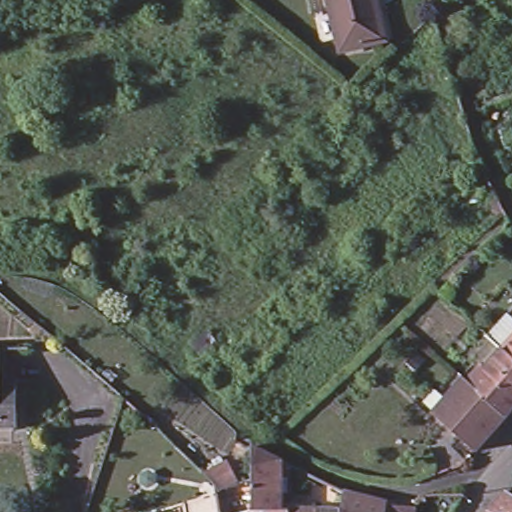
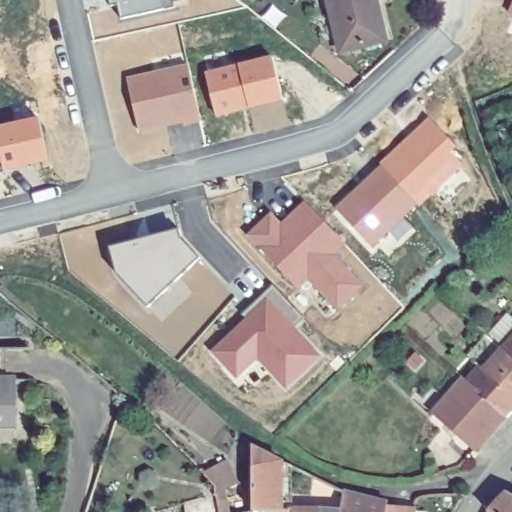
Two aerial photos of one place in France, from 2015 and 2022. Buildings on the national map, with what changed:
new [(115,12),(112,0),(120,0),(122,10),(115,12)]
new [(125,25),(119,0),(176,0),(179,12),(125,25)]
unchanged [(375,0),(386,41),(340,53),(326,0),(375,0)]
new [(512,4),(512,13),(509,11),(512,4)]
new [(219,121),(209,80),(276,64),(286,105),(252,113),(242,115),(219,121)]
new [(204,125),(187,129),(186,121),(174,124),(175,128),(142,136),(131,85),(192,71),(204,125)]
new [(43,125),(52,164),(7,174),(0,143),(0,134),(43,125)]
new [(411,146),(415,141),(434,125),(459,151),(453,156),(466,170),(436,198),(428,188),(413,201),(387,172),(385,170),(411,146)]
new [(7,177),(0,179),(0,144),(7,177)]
new [(420,209),(374,252),(340,215),(358,199),(361,202),(367,196),(364,193),(386,172),(420,209)]
new [(337,261),(366,292),(341,315),(312,284),(302,293),(252,241),(269,225),(275,220),(284,231),(279,237),(309,208),(348,250),(337,261)]
new [(185,243),(204,264),(151,313),(120,279),(114,257),(112,253),(153,242),(182,234),(185,243)]
new [(308,323),(296,335),(322,362),(290,393),(261,362),(240,382),(217,358),(259,319),(251,326),(245,320),(253,313),(277,290),(308,323)]
unchanged [(508,349),(512,344),(512,355),(507,350),(508,349)]
unchanged [(472,382),(485,367),(489,370),(507,350),(512,355),(512,416),(511,418),(472,382)]
unchanged [(511,418),(479,453),(436,414),(468,378),(472,382),(511,418)]
unchanged [(8,383),(10,428),(0,428),(0,383),(8,383)]
unchanged [(283,505),(283,508),(263,509),(254,510),(253,479),(251,446),(282,462),(283,505)]
unchanged [(340,510),(342,510),(343,492),(385,503),(389,504),(388,507),(415,508),(414,512),(340,512),(340,510)]
unchanged [(186,504),(216,494),(220,512),(187,512),(186,504)]
unchanged [(512,501),(512,512),(492,512),(506,498),(512,501)]
unchanged [(263,509),(283,508),(283,505),(340,510),(340,512),(263,512),(263,509)]
unchanged [(254,510),(263,509),(263,512),(248,512),(254,510)]

